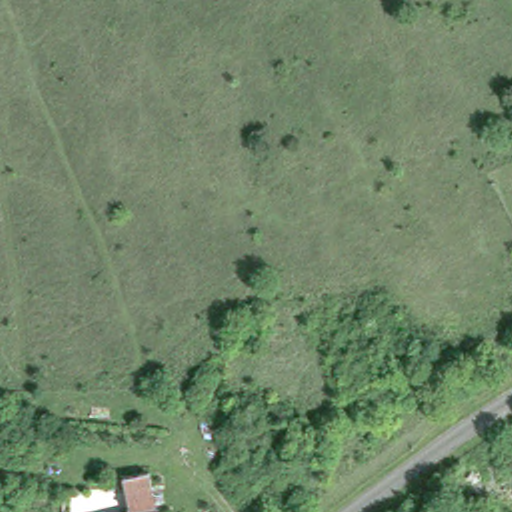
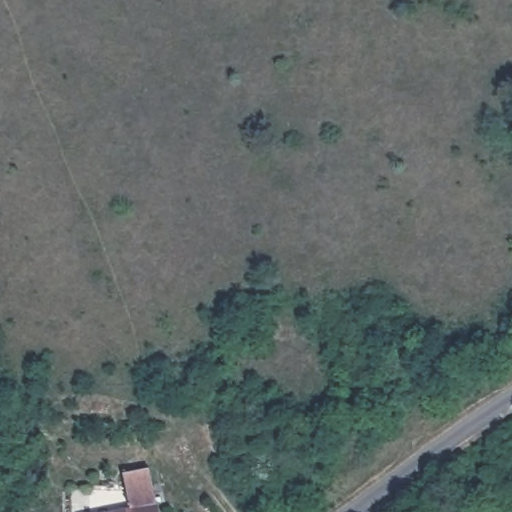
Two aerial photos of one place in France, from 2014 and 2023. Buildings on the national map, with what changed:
unchanged [(122,477),(120,470),(145,464),(147,472),(156,512),(130,512),(122,477)]

